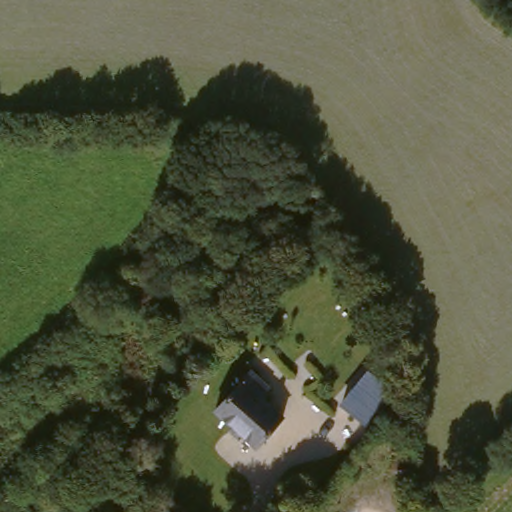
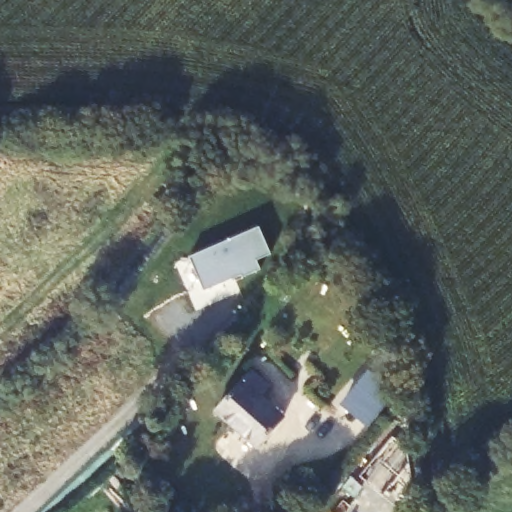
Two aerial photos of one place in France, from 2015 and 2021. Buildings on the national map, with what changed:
new [(258,226),(271,253),(257,260),(261,268),(244,277),(242,274),(205,291),(190,257),(258,226)]
unchanged [(211,420),(245,378),(265,393),(255,406),(280,430),(260,455),(257,459),(211,420)]
unchanged [(389,399),(362,430),(338,410),(363,378),(389,399)]
unchanged [(416,478),(424,512),(409,512),(401,481),(416,478)]
demolished [(380,512),(347,512),(367,496),(380,512)]

